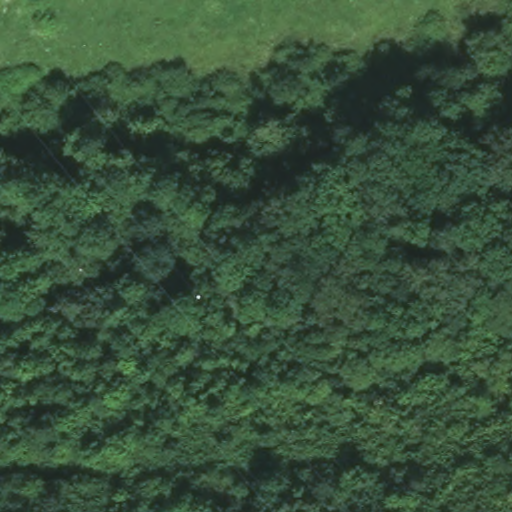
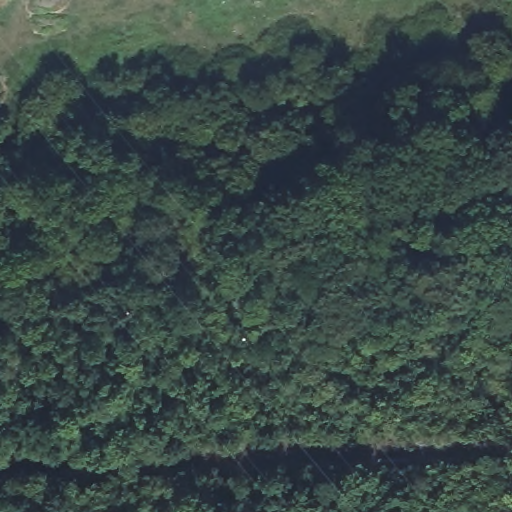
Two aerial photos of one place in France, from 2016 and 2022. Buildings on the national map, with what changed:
[]

